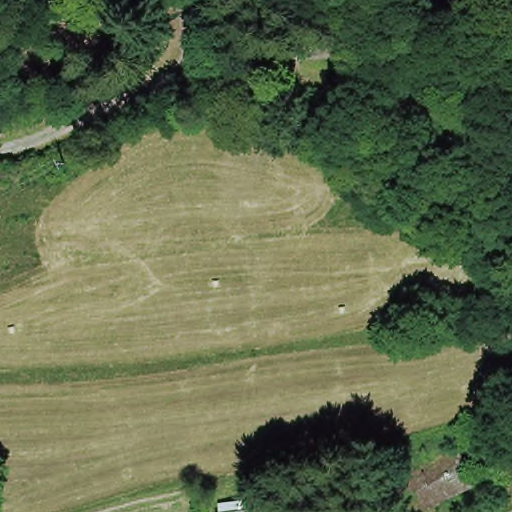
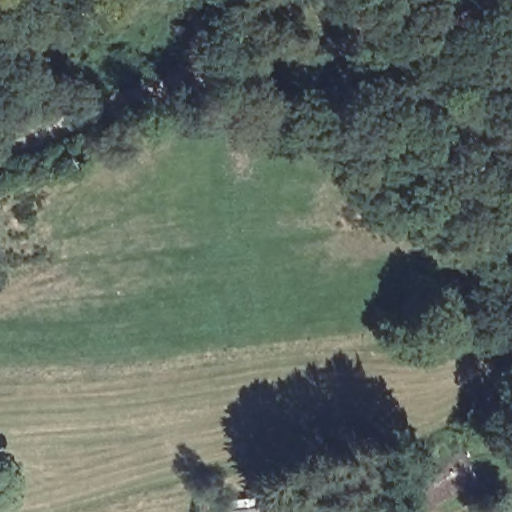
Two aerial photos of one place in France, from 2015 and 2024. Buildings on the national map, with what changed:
unchanged [(425,496),(403,507),(396,493),(463,460),(481,496),(458,507),(448,512),(434,512),(433,511),(425,496)]
unchanged [(257,512),(245,512),(256,511),(257,512)]

